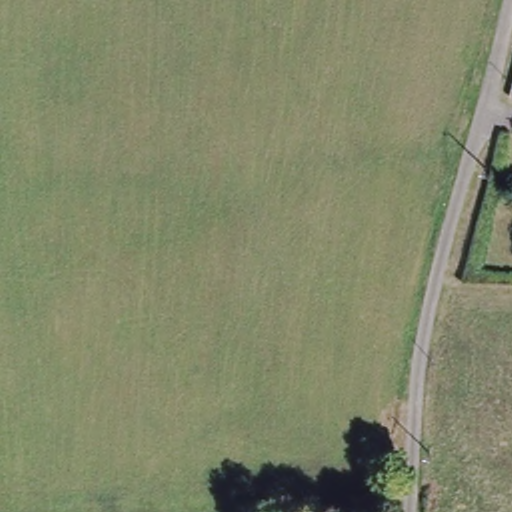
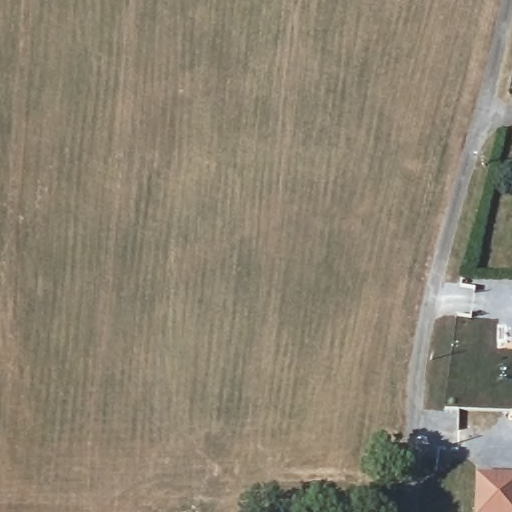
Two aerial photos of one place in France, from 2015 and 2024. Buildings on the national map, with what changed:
new [(477,472),(512,474),(512,512),(474,512),(477,472)]

